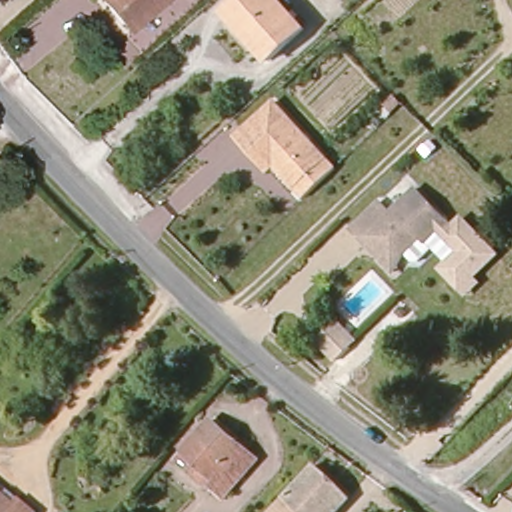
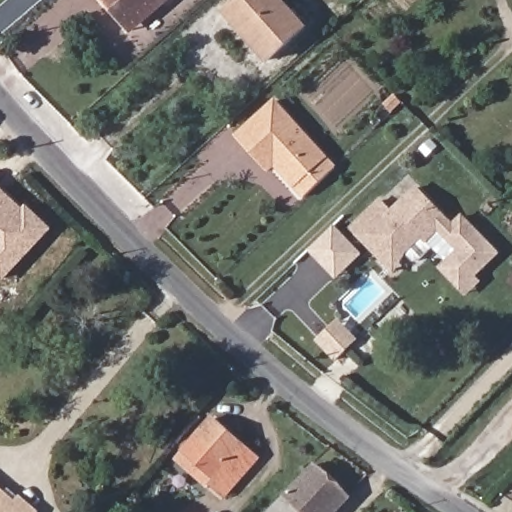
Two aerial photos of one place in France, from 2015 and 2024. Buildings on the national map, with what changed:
unchanged [(111,0),(167,0),(133,27),(111,0)]
unchanged [(245,33),(229,15),(245,0),(278,0),(306,32),(275,58),(249,29),(245,33)]
unchanged [(274,164),(266,172),(247,152),(234,137),(273,99),(326,153),(334,162),(303,194),(294,185),(274,164)]
unchanged [(360,238),(347,225),(378,195),(390,206),(416,182),(449,216),(434,230),(427,237),(392,270),(360,238)]
new [(23,209),(26,206),(53,230),(2,282),(0,281),(0,187),(23,209)]
unchanged [(449,216),(453,222),(464,214),(498,254),(477,277),(482,282),(467,296),(436,267),(454,252),(434,230),(449,216)]
unchanged [(340,323),(358,341),(354,346),(341,358),(323,341),(336,327),(340,323)]
unchanged [(173,457),(176,453),(184,444),(211,413),(268,463),(234,502),(221,492),(219,494),(173,457)]
unchanged [(356,493),(338,512),(267,512),(315,458),(356,493)]
unchanged [(15,502),(26,492),(42,508),(39,512),(0,512),(0,488),(15,502)]

